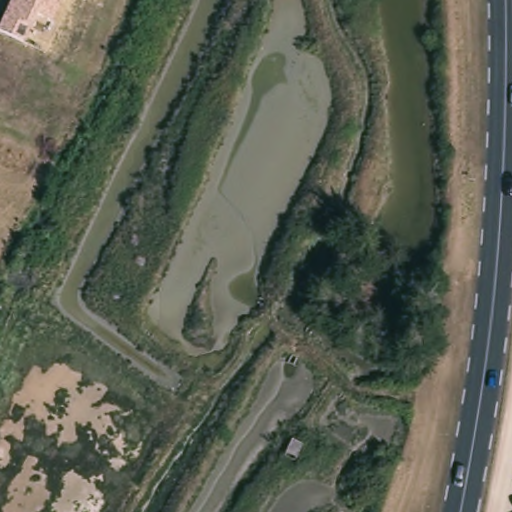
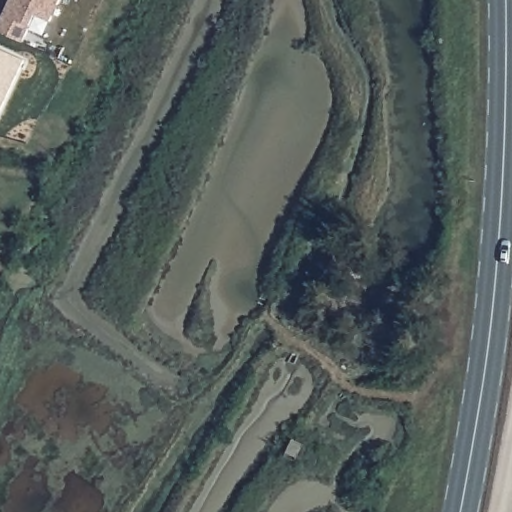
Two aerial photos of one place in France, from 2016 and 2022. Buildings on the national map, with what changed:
unchanged [(61,0),(51,21),(35,13),(24,40),(0,31),(0,23),(11,0),(61,0)]
new [(0,112),(0,48),(24,58),(0,112)]
unchanged [(371,255),(364,272),(359,270),(356,278),(335,269),(346,245),(371,255)]
unchanged [(288,457),(295,439),(308,445),(301,463),(288,457)]

